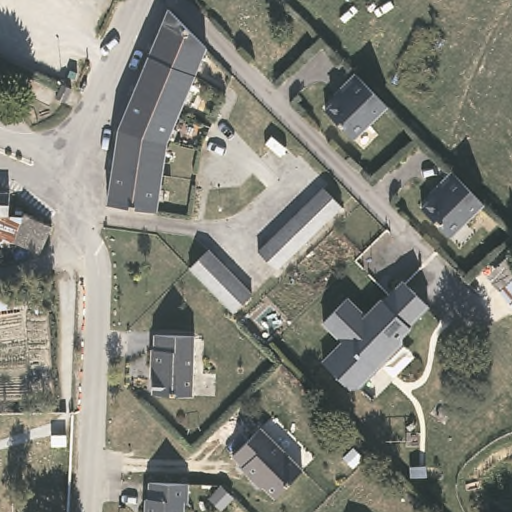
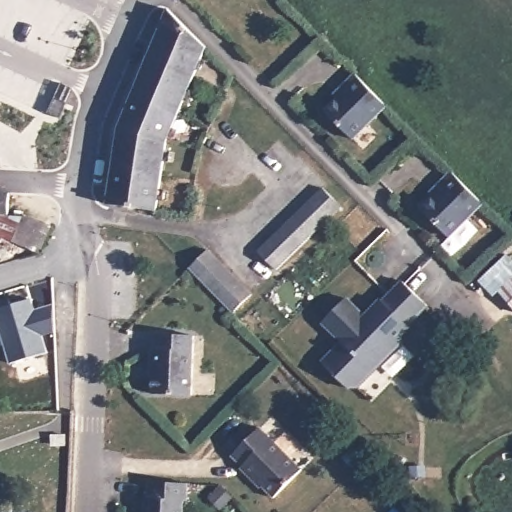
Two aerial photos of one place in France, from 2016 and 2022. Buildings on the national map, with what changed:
unchanged [(113,165),(115,154),(119,129),(127,108),(130,103),(138,82),(156,38),(169,10),(183,25),(206,48),(171,132),(167,141),(156,212),(107,205),(110,187),(111,180),(112,175),(113,165)]
unchanged [(387,106),(353,141),(324,112),(347,91),(343,87),(356,75),(387,106)]
unchanged [(72,90),(66,103),(55,98),(62,85),(72,90)]
unchanged [(483,204),(449,238),(420,210),(442,189),(439,185),(452,172),(483,204)]
unchanged [(342,207),(276,271),(258,251),(323,189),(342,207)]
unchanged [(25,215),(52,227),(39,254),(13,242),(0,242),(0,243),(0,193),(9,194),(8,216),(23,217),(25,215)]
demolished [(494,223),(488,230),(476,219),(482,212),(494,223)]
unchanged [(252,294),(232,313),(189,270),(189,269),(208,250),(252,294)]
unchanged [(422,306),(403,325),(404,327),(397,333),(399,336),(387,348),(375,361),(370,359),(363,366),(363,372),(352,384),(342,385),(317,358),(336,340),(317,321),(341,297),(359,314),(375,298),(377,300),(396,280),(422,306)]
unchanged [(512,286),(512,304),(503,295),(512,286)]
new [(11,361),(0,325),(0,307),(31,298),(35,312),(52,305),(53,332),(42,335),(48,350),(11,361)]
unchanged [(190,336),(188,395),(148,393),(149,367),(145,367),(146,348),(150,348),(150,334),(190,336)]
unchanged [(299,470),(272,497),(253,478),(251,481),(238,467),(241,464),(231,454),(258,427),(299,470)]
unchanged [(189,501),(186,501),(186,512),(145,512),(146,497),(150,497),(151,482),(190,483),(189,501)]

